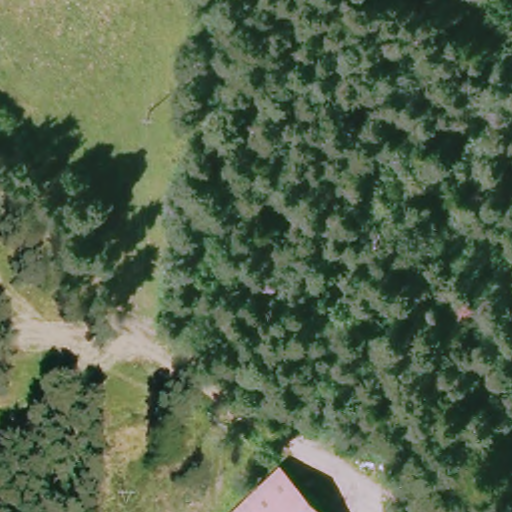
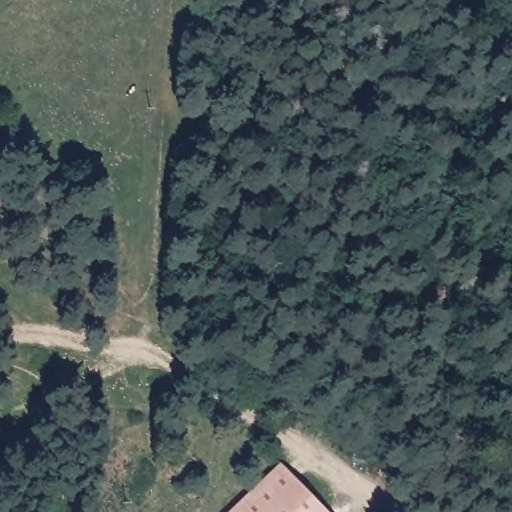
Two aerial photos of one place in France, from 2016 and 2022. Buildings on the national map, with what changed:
unchanged [(323,512),(223,512),(278,462),(323,512)]

